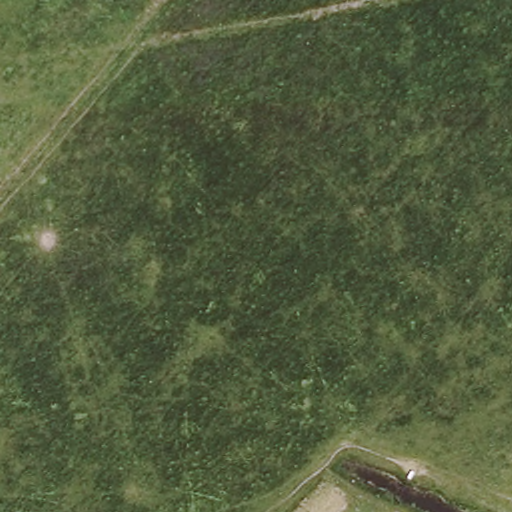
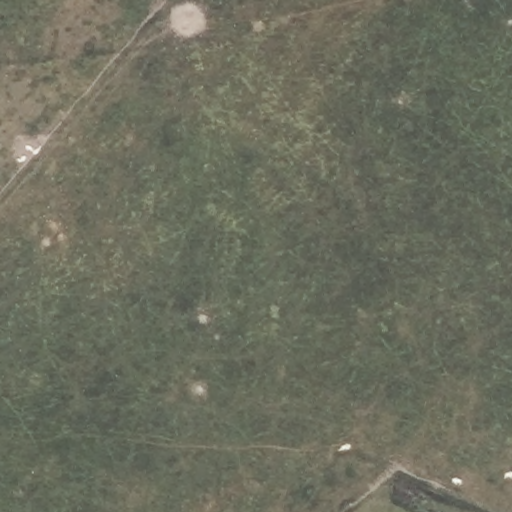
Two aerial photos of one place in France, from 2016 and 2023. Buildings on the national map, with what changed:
[]

